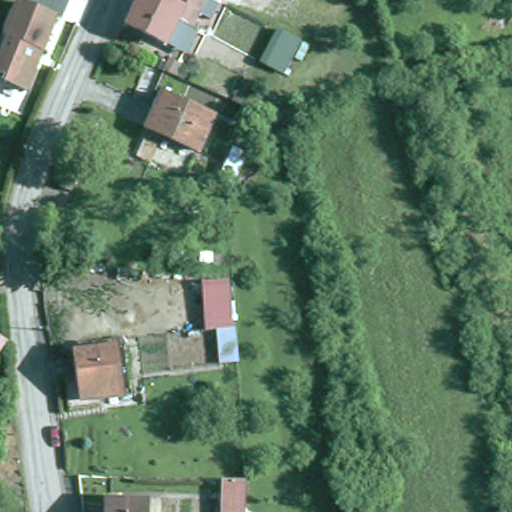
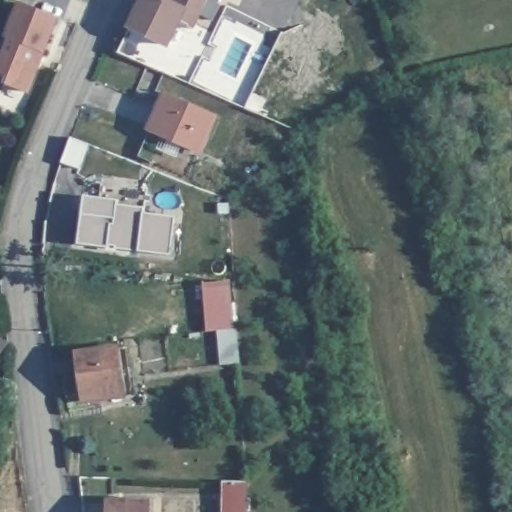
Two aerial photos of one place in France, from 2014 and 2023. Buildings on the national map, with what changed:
unchanged [(160,54),(157,40),(120,22),(131,0),(193,0),(180,26),(187,29),(172,60),(160,54)]
unchanged [(20,1),(57,14),(55,17),(29,89),(0,79),(0,64),(10,37),(6,35),(17,10),(20,1)]
unchanged [(160,89),(212,113),(195,148),(145,124),(160,89)]
demolished [(72,164),(83,170),(73,193),(60,187),(62,185),(72,164)]
new [(82,195),(117,200),(117,204),(144,208),(143,212),(173,217),(168,255),(138,251),(77,244),(80,215),(82,195)]
unchanged [(203,292),(224,291),(228,331),(207,332),(203,292)]
unchanged [(72,347),(113,342),(119,392),(77,395),(72,347)]
unchanged [(220,477),(238,477),(238,512),(220,512),(220,477)]
unchanged [(105,497),(143,498),(143,512),(104,512),(105,497)]

